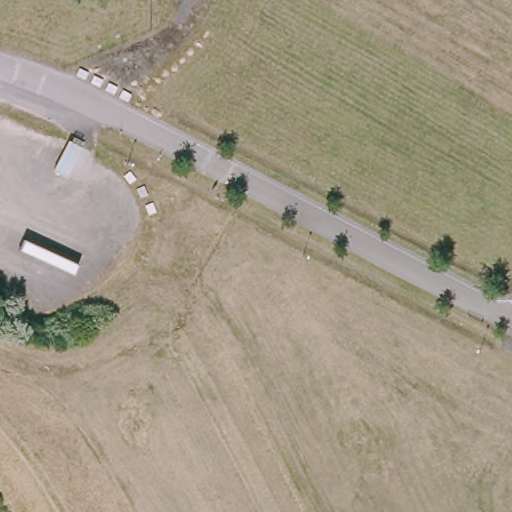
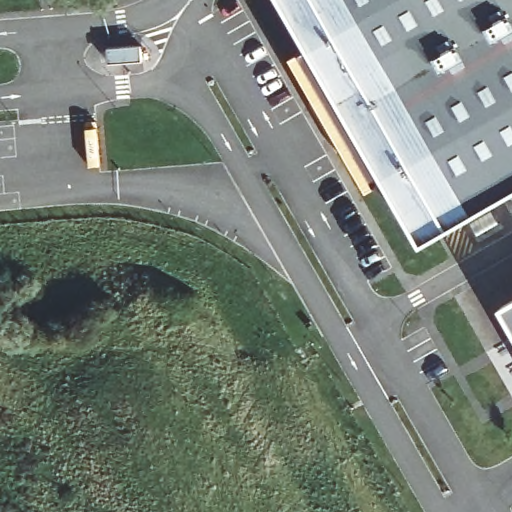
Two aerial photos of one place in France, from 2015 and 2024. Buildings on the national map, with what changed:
new [(421,236),(287,0),(512,0),(512,181),(421,236)]
new [(142,46),(144,61),(111,63),(110,48),(142,46)]
new [(300,52),(377,186),(371,189),(294,56),(300,52)]
new [(494,208),(502,221),(480,234),(472,221),(494,208)]
new [(495,297),(512,287),(512,327),(495,297)]

